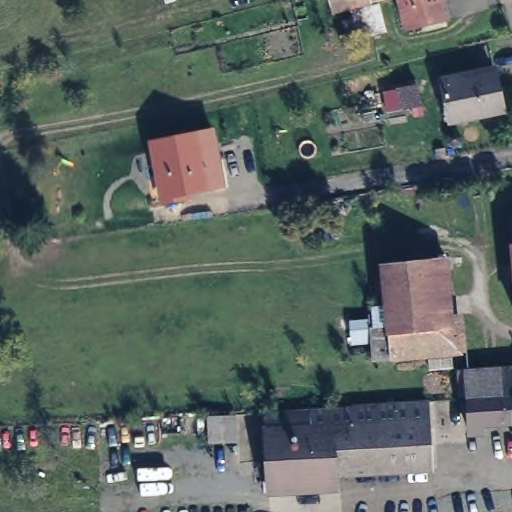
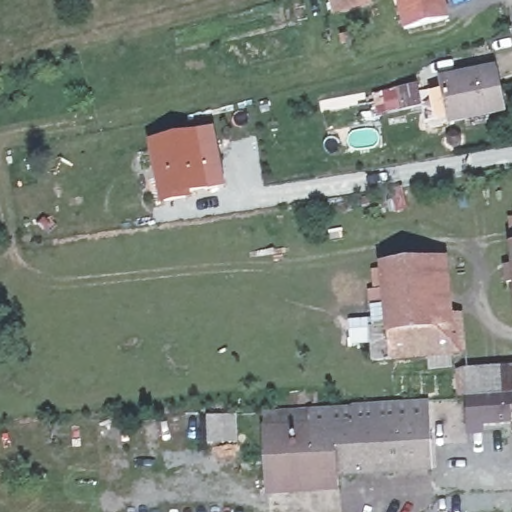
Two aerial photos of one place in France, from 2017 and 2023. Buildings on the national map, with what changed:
unchanged [(440,10),(399,19),(395,0),(438,0),(440,10)]
unchanged [(454,127),(445,84),(464,80),(498,72),(499,78),(507,116),(454,127)]
unchanged [(415,83),(422,119),(408,123),(405,110),(395,111),(392,87),(415,83)]
unchanged [(187,129),(210,122),(225,178),(190,188),(191,191),(166,196),(151,137),(187,129)]
unchanged [(512,218),(512,230),(511,219),(512,218)]
unchanged [(512,242),(512,264),(510,242),(512,242)]
unchanged [(457,351),(436,352),(372,358),(369,326),(385,325),(380,263),(429,258),(444,256),(450,323),(455,322),(457,351)]
unchanged [(512,393),(465,396),(464,392),(460,392),(460,368),(512,365),(512,393)]
unchanged [(512,415),(506,415),(506,423),(466,426),(465,400),(512,397),(512,415)]
unchanged [(262,491),(261,476),(258,429),(257,412),(305,410),(377,405),(421,402),(425,468),(329,473),(329,475),(329,488),(262,491)]

